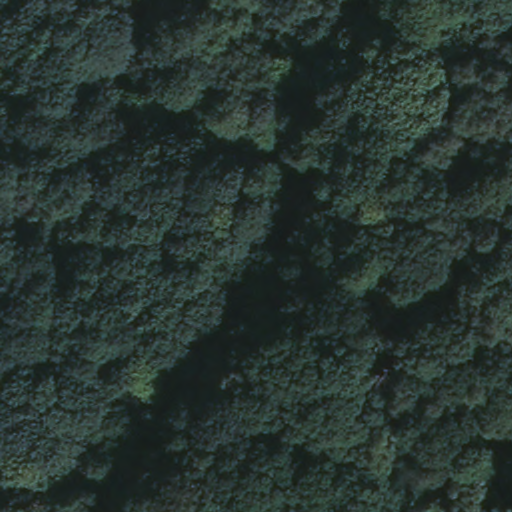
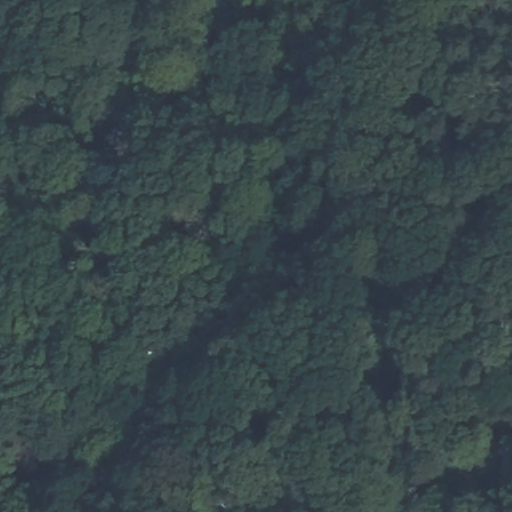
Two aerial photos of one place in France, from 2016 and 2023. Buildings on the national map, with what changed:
unchanged [(159,329),(148,351),(130,341),(141,320),(159,329)]

